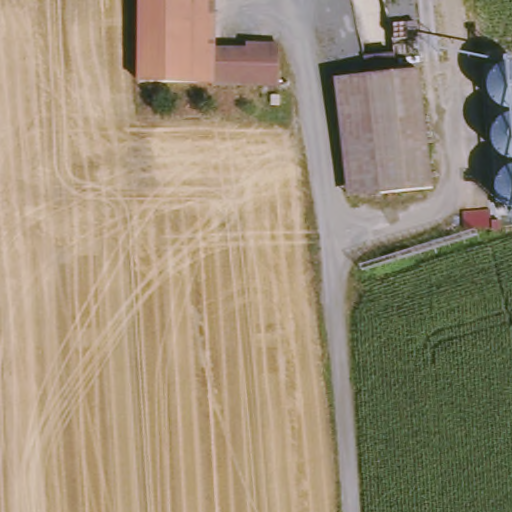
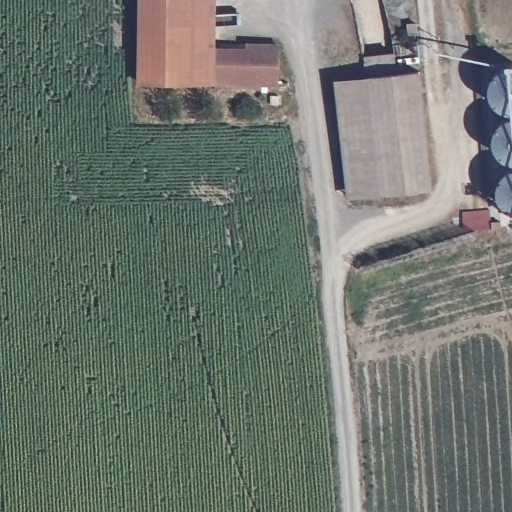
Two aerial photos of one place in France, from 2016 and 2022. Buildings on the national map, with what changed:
unchanged [(214,79),(139,77),(139,0),(218,0),(217,48),(213,48),(214,79)]
unchanged [(425,40),(412,40),(411,26),(424,25),(425,40)]
unchanged [(259,47),(259,40),(280,40),(280,78),(265,79),(214,81),(213,48),(259,47)]
unchanged [(490,65),(512,63),(512,211),(503,212),(490,65)]
unchanged [(420,74),(428,191),(379,193),(370,76),(420,74)]
unchanged [(379,193),(348,195),(340,78),(370,76),(379,193)]

